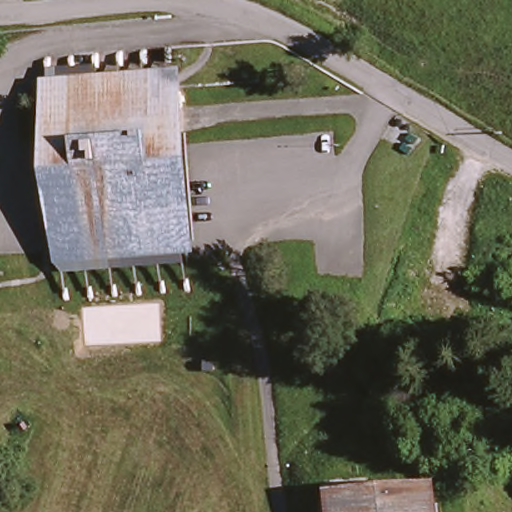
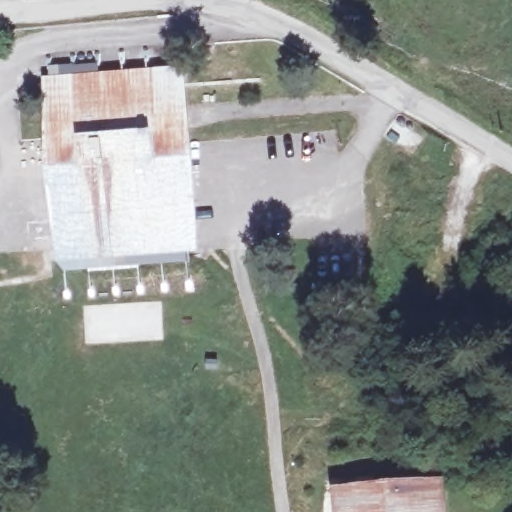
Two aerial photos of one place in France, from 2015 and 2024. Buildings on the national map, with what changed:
unchanged [(190,228),(66,236),(54,96),(180,88),(190,228)]
unchanged [(337,512),(336,503),(362,501),(363,486),(393,484),(394,502),(427,501),(428,512),(337,512)]

